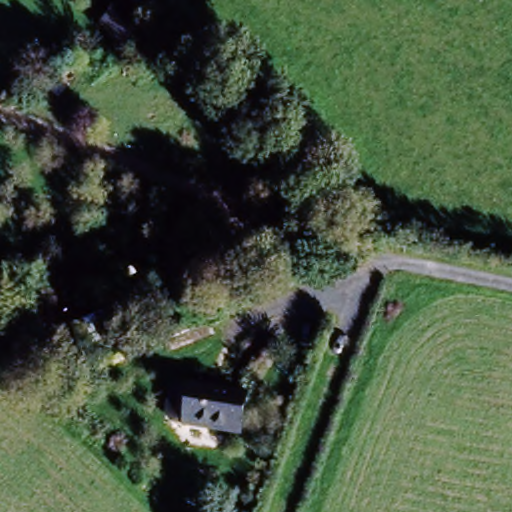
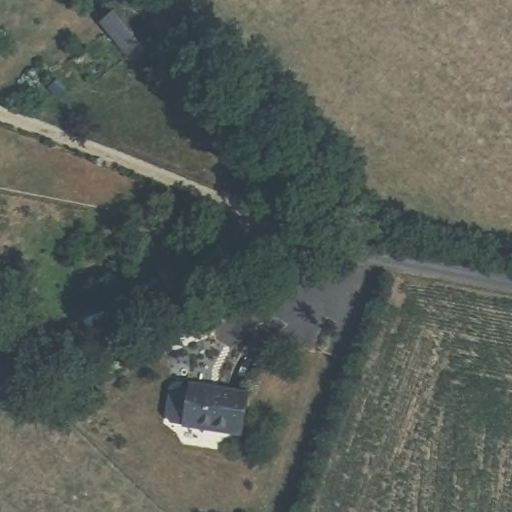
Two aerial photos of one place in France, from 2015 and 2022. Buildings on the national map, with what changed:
unchanged [(130,35),(115,49),(93,25),(108,11),(130,35)]
unchanged [(100,343),(91,320),(158,292),(167,314),(100,343)]
unchanged [(173,425),(167,418),(170,392),(175,386),(245,392),(242,431),(173,425)]

